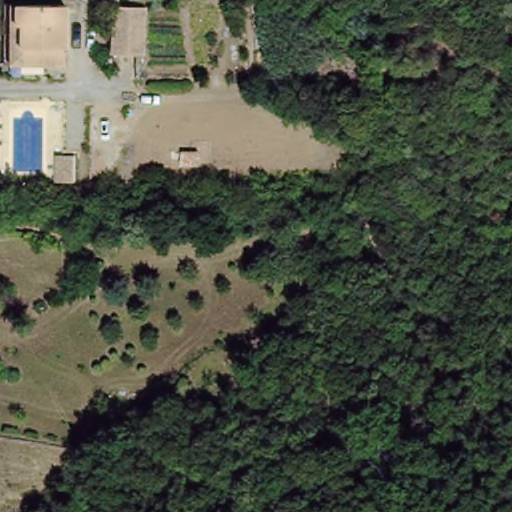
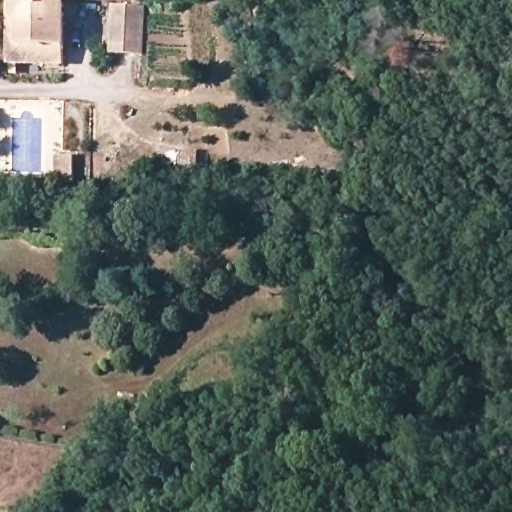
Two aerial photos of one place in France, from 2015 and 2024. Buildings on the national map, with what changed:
unchanged [(22,21),(18,19),(18,4),(68,4),(67,65),(21,65),(22,21)]
unchanged [(146,10),(148,57),(115,55),(114,10),(146,10)]
unchanged [(40,155),(43,177),(24,179),(26,155),(40,155)]

